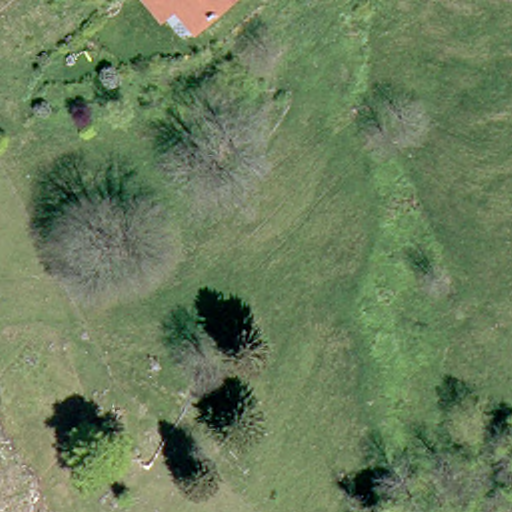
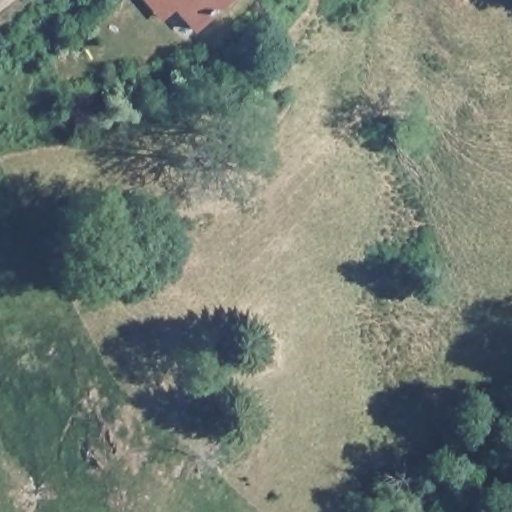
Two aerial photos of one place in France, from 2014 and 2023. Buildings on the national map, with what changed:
unchanged [(162,22),(144,0),(169,0),(177,8),(162,22)]
unchanged [(169,0),(242,0),(202,35),(169,0)]

